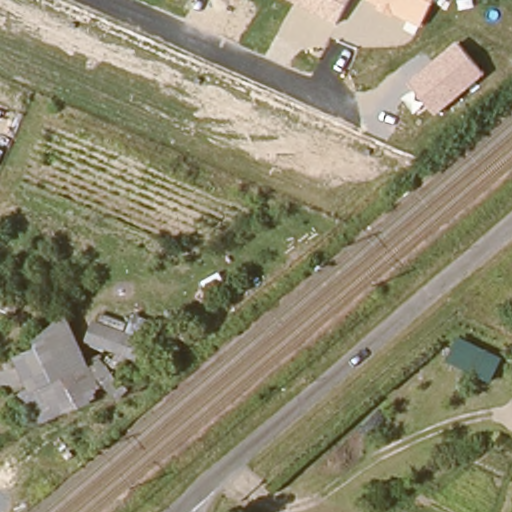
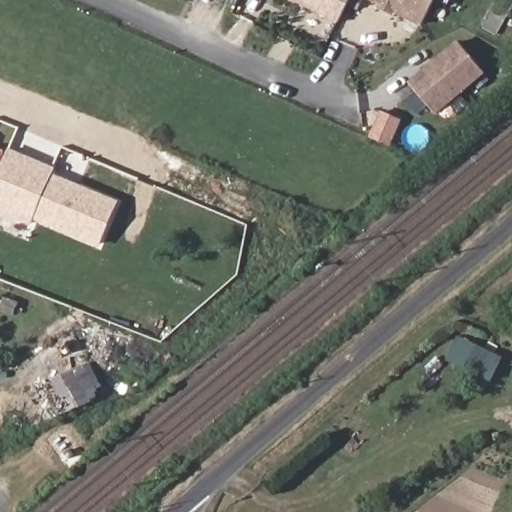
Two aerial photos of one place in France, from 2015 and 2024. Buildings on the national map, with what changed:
unchanged [(292,0),(351,0),(337,24),(292,0)]
unchanged [(368,1),(369,0),(434,0),(421,27),(368,1)]
unchanged [(436,117),(426,106),(420,112),(409,96),(417,90),(411,84),(460,43),(485,76),(436,117)]
new [(99,249),(34,220),(31,227),(0,213),(0,169),(8,148),(56,168),(53,174),(119,201),(99,249)]
unchanged [(121,387),(34,426),(15,394),(28,386),(12,354),(65,309),(83,345),(98,315),(154,341),(146,360),(102,346),(103,358),(121,387)]
new [(504,357),(493,380),(448,359),(459,336),(504,357)]

